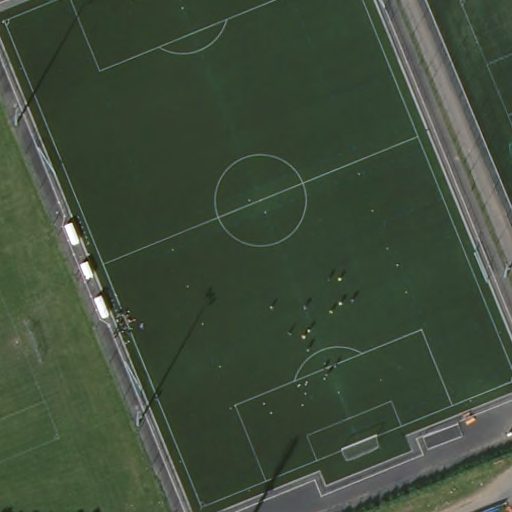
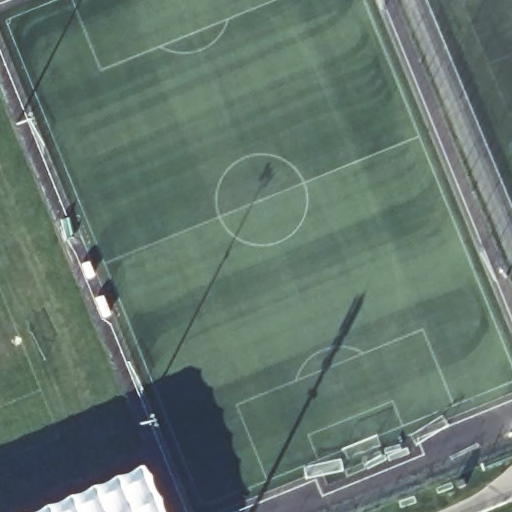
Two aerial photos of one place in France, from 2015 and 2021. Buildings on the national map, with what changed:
new [(30,512),(138,466),(158,512),(30,512)]

